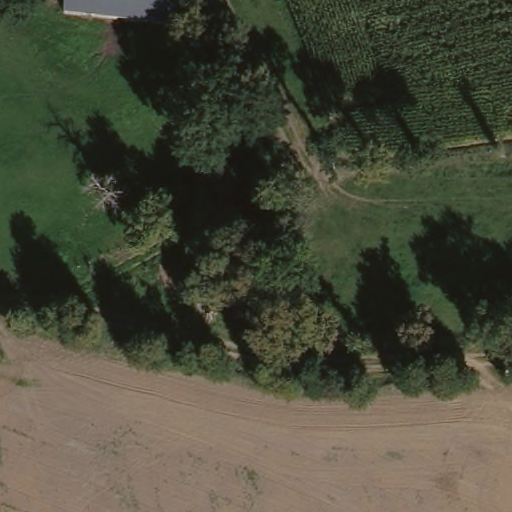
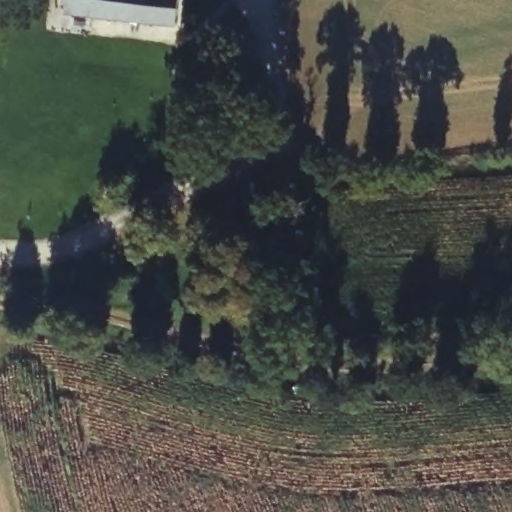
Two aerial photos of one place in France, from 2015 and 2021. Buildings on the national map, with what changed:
unchanged [(176,21),(100,13),(65,9),(66,0),(178,0),(176,21)]

